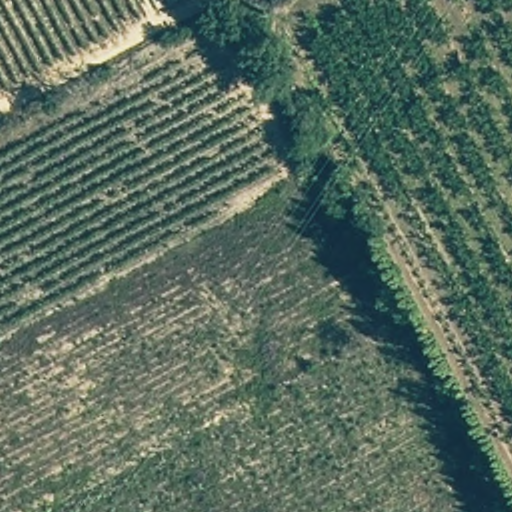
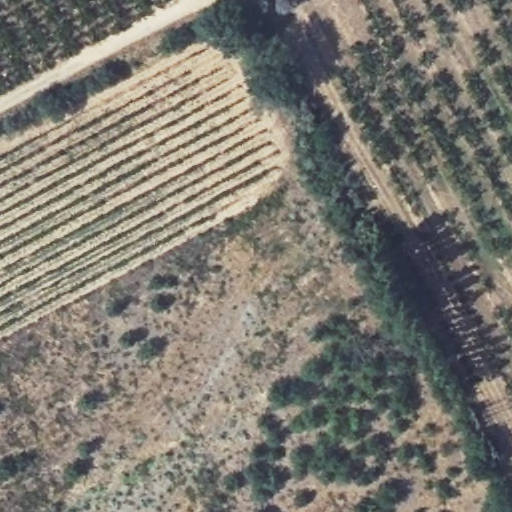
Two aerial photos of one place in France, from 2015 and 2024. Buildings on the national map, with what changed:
[]

